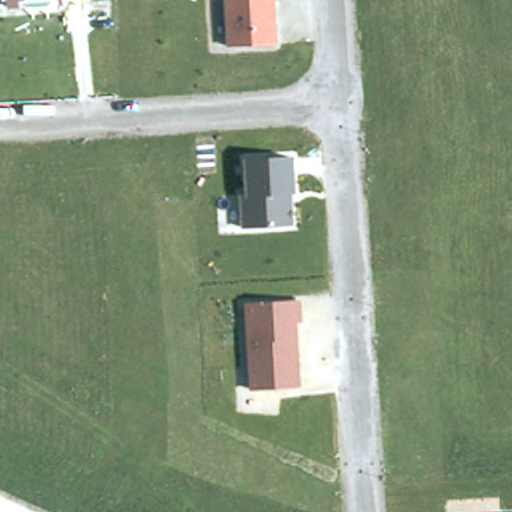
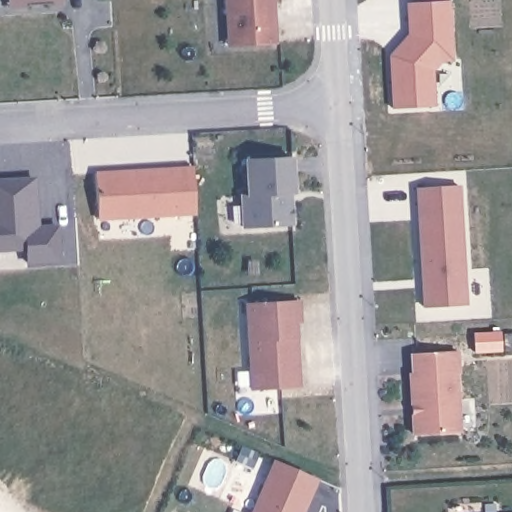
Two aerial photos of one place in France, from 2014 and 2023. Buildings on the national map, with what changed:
unchanged [(6,9),(6,0),(63,0),(63,5),(6,9)]
unchanged [(231,41),(228,0),(276,0),(277,41),(231,41)]
new [(449,0),(452,57),(442,57),(433,67),(435,105),(395,108),(393,56),(397,55),(403,48),(400,44),(412,33),(410,2),(436,0),(449,0)]
unchanged [(292,225),(245,224),(244,157),(292,157),(292,225)]
new [(194,167),(196,212),(98,217),(95,172),(194,167)]
new [(32,179),(34,220),(30,220),(31,228),(55,227),(57,260),(25,263),(24,249),(0,250),(0,181),(32,179)]
new [(467,303),(425,306),(416,188),(458,185),(467,303)]
unchanged [(302,383),(251,385),(247,300),(300,300),(302,383)]
new [(462,430),(411,434),(407,353),(458,350),(462,430)]
new [(305,512),(249,512),(273,457),(320,478),(305,512)]

